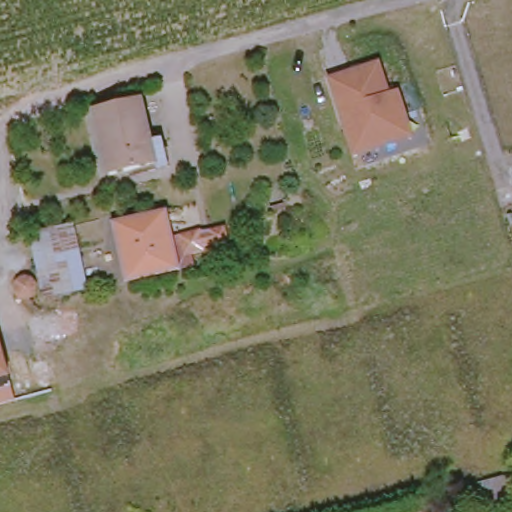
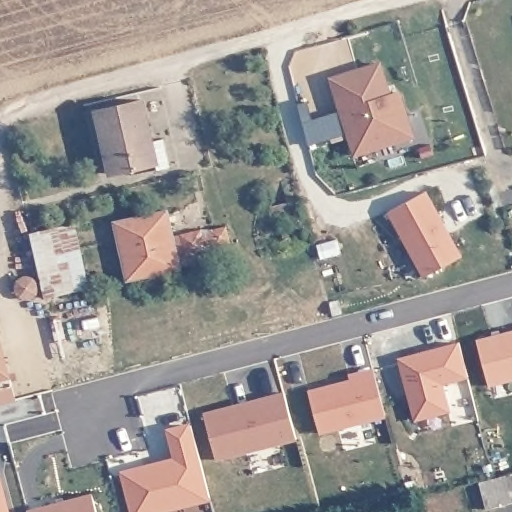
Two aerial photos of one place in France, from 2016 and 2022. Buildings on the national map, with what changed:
unchanged [(393,142),(354,154),(330,78),(380,63),(389,95),(398,92),(407,121),(412,136),(393,142)]
unchanged [(172,171),(161,174),(159,167),(109,177),(96,113),(146,102),(154,143),(165,141),(172,171)]
new [(388,211),(427,191),(460,254),(423,275),(388,211)]
unchanged [(131,282),(120,246),(114,223),(168,209),(175,235),(183,267),(131,282)]
unchanged [(183,267),(175,235),(202,226),(202,228),(227,223),(231,238),(206,244),(206,246),(195,250),(198,263),(183,267)]
unchanged [(39,236),(72,230),(85,290),(53,299),(39,236)]
unchanged [(24,298),(23,293),(23,289),(24,286),(26,284),(31,282),(36,282),(40,284),(42,287),(43,292),(42,302),(31,304),(24,298)]
new [(512,330),(512,380),(488,386),(477,339),(512,330)]
new [(414,420),(398,357),(459,342),(467,378),(442,384),(449,411),(414,420)]
unchanged [(11,393),(0,396),(0,352),(11,393)]
new [(348,373),(370,368),(385,417),(319,434),(308,390),(349,378),(348,373)]
new [(282,392),(296,439),(215,460),(204,412),(282,392)]
new [(162,512),(136,512),(126,474),(180,461),(173,432),(194,426),(213,499),(162,512)]
unchanged [(512,504),(492,509),(483,482),(512,474),(512,504)]
new [(9,512),(0,512),(0,478),(9,512)]
new [(91,494),(96,512),(29,512),(28,510),(91,494)]

